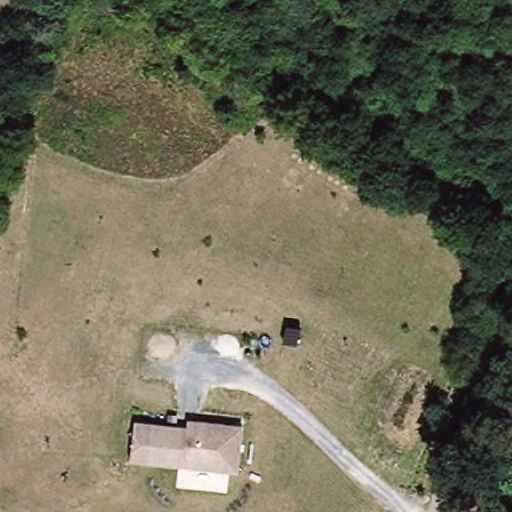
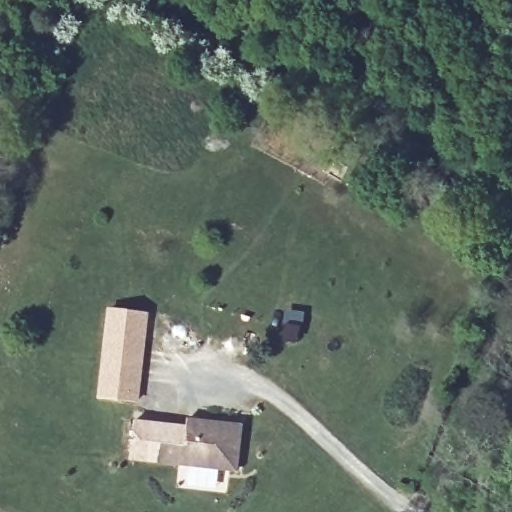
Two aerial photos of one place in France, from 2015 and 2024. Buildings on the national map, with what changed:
unchanged [(22,0),(27,0),(25,2),(22,0)]
unchanged [(1,131),(0,133),(0,130),(1,131)]
new [(106,307),(148,313),(138,403),(97,398),(106,307)]
unchanged [(234,474),(128,462),(132,423),(185,430),(185,422),(240,428),(234,474)]

